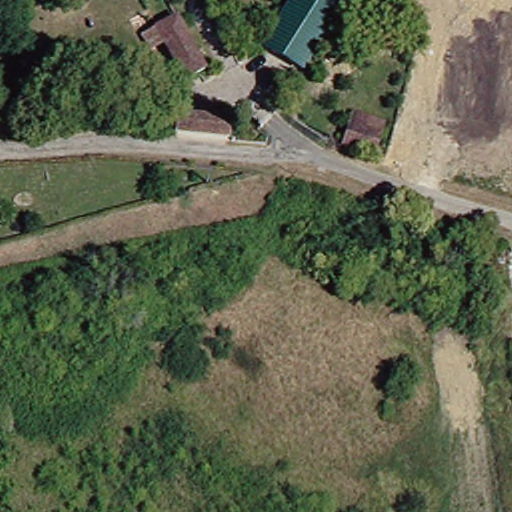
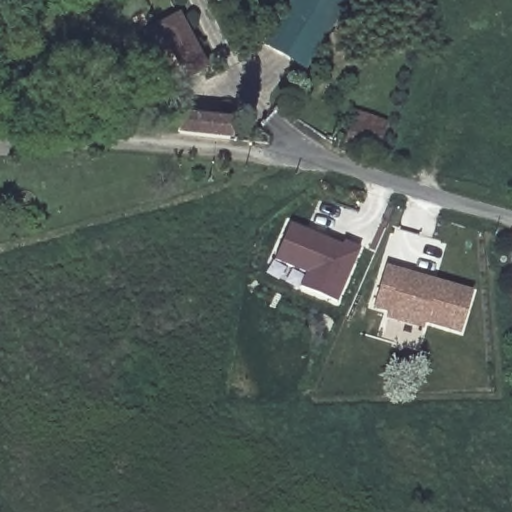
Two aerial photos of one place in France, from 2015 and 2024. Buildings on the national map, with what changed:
unchanged [(264,45),(293,0),(346,0),(302,69),(264,45)]
unchanged [(195,63),(176,74),(149,26),(169,16),(195,63)]
unchanged [(232,120),(229,141),(176,134),(180,113),(232,120)]
unchanged [(385,124),(375,153),(345,143),(356,113),(385,124)]
new [(320,234),(329,238),(344,244),(345,240),(361,247),(338,301),(301,285),(307,271),(276,259),(291,222),(320,234)]
new [(386,266),(403,271),(435,281),(472,292),(461,332),(425,321),(420,337),(390,328),(394,312),(374,306),(386,266)]

